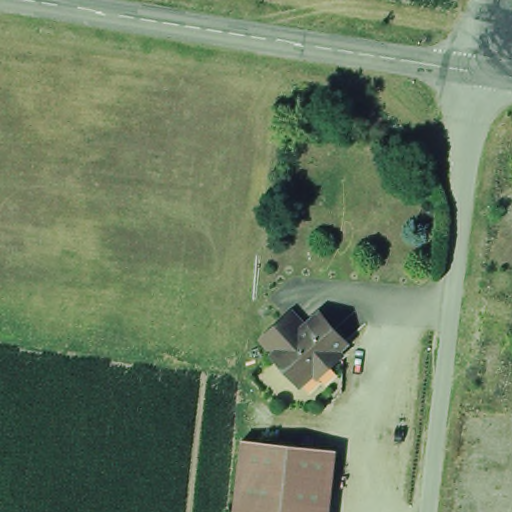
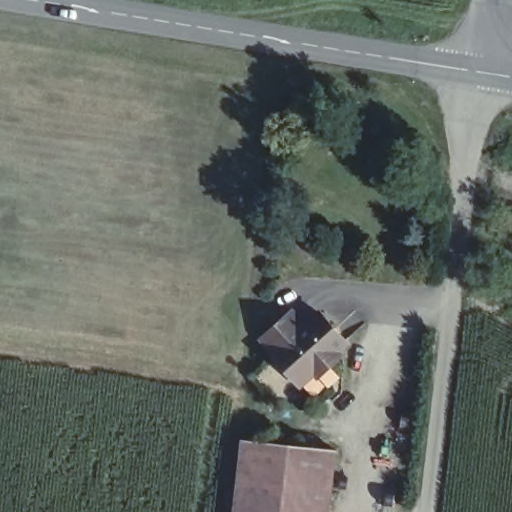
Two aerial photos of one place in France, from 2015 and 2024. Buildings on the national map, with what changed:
unchanged [(339,350),(342,354),(318,376),(315,372),(300,385),(273,354),(275,352),(262,339),(286,317),(298,331),(320,312),(347,343),(339,350)]
unchanged [(328,456),(322,512),(228,512),(235,446),(328,456)]

